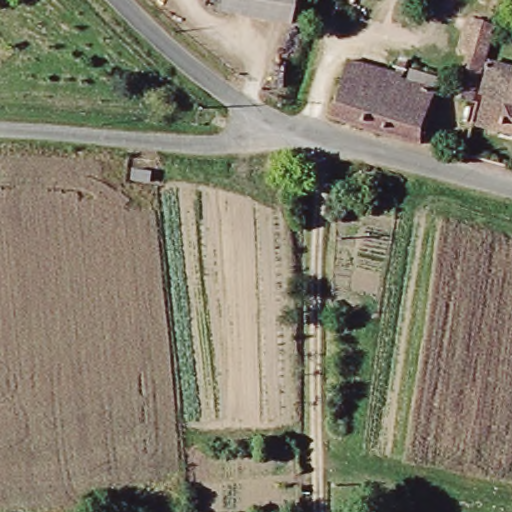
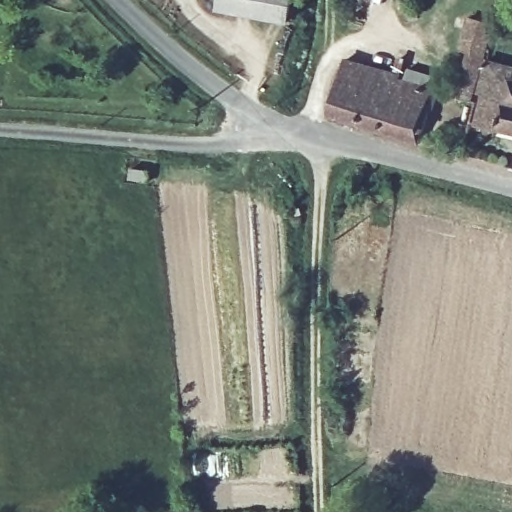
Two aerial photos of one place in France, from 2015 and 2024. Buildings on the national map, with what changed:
unchanged [(227,0),(300,0),(296,24),(226,11),(227,0)]
unchanged [(487,30),(466,102),(454,99),(465,59),(454,56),(463,24),(487,30)]
unchanged [(351,55),(442,82),(425,140),(331,114),(351,55)]
unchanged [(480,97),(489,98),(490,92),(484,90),(493,56),(510,60),(505,80),(512,82),(512,130),(475,122),(480,97)]
unchanged [(146,166),(145,177),(131,177),(131,166),(146,166)]

